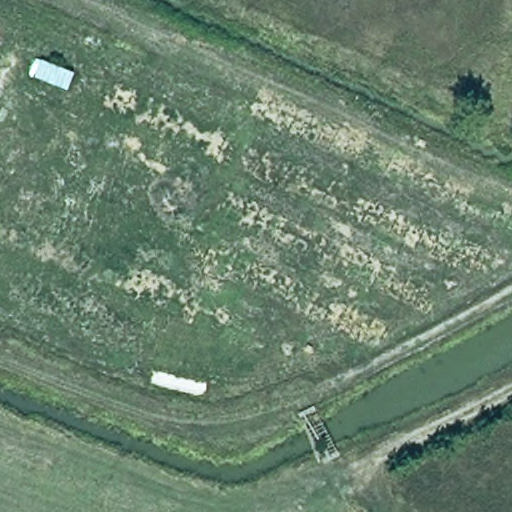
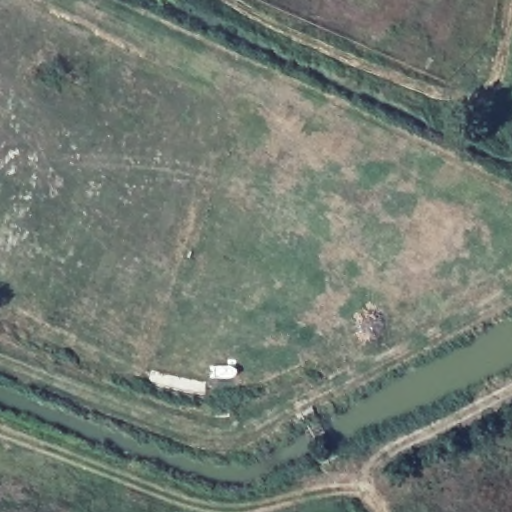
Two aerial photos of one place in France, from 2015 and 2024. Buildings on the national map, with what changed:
unchanged [(39,60),(72,74),(64,90),(32,76),(39,60)]

